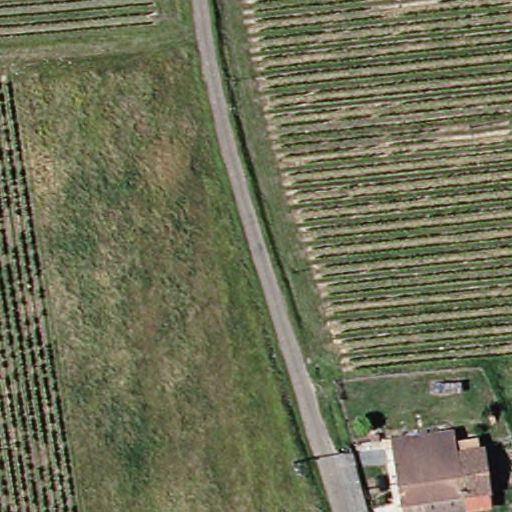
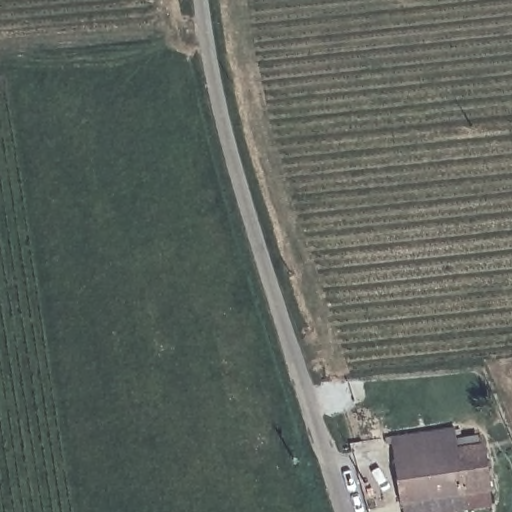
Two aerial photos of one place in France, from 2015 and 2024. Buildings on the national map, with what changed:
unchanged [(402,503),(395,505),(380,440),(443,429),(446,450),(480,446),(484,469),(487,487),(416,501),(419,512),(404,512),(402,503)]

